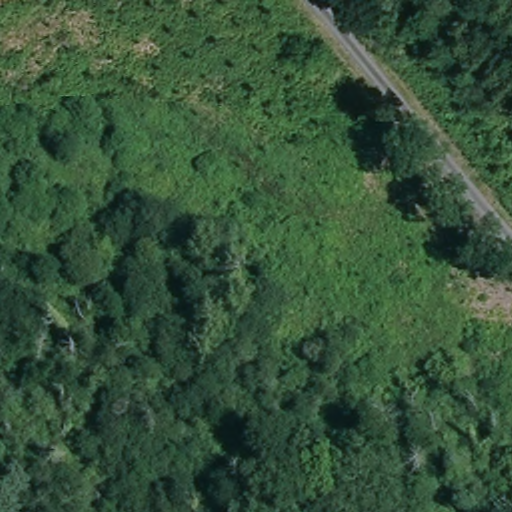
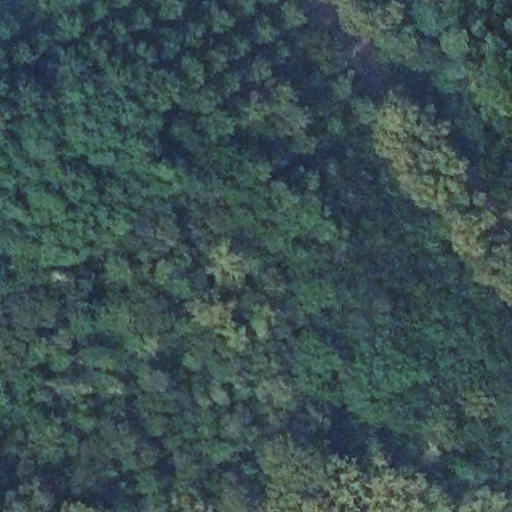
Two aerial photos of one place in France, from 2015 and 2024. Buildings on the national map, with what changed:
[]

